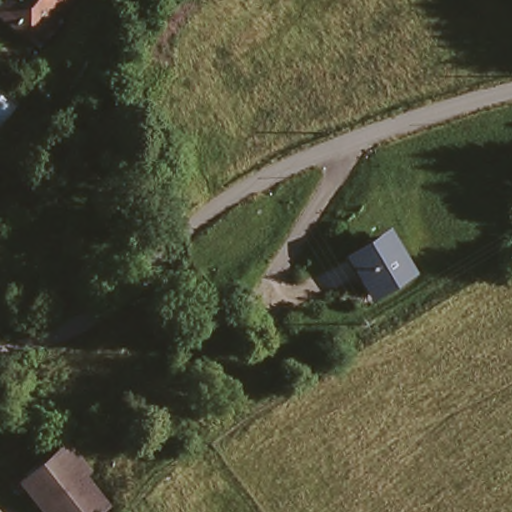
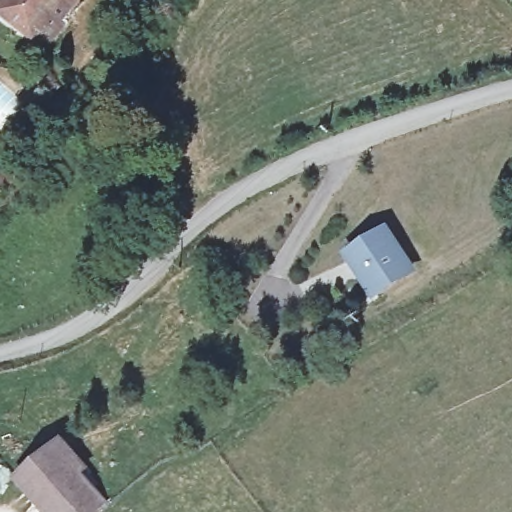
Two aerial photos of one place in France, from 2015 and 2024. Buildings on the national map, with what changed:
unchanged [(55,21),(37,37),(27,26),(23,30),(0,5),(0,0),(73,0),(52,19),(55,21)]
unchanged [(391,236),(411,271),(375,292),(354,257),(391,236)]
unchanged [(116,502),(104,512),(53,512),(24,482),(63,445),(66,443),(72,449),(92,470),(88,473),(116,502)]

